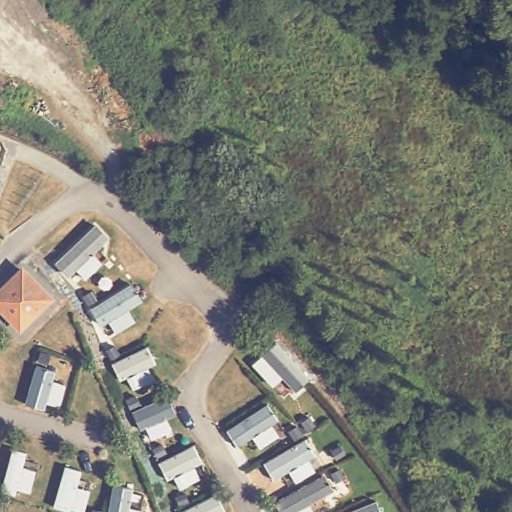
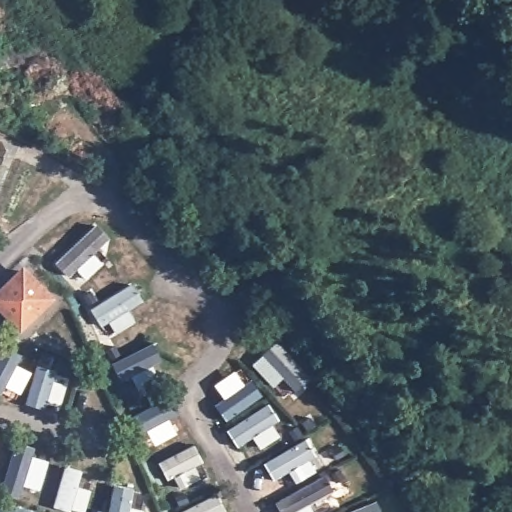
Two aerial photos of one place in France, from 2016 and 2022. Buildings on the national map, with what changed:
unchanged [(25,329),(0,306),(0,291),(26,264),(58,296),(25,329)]

